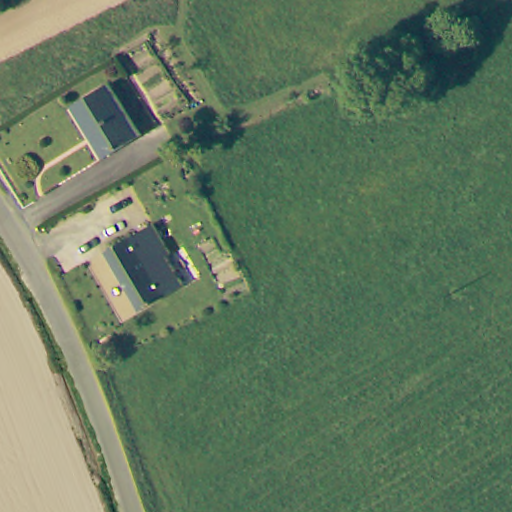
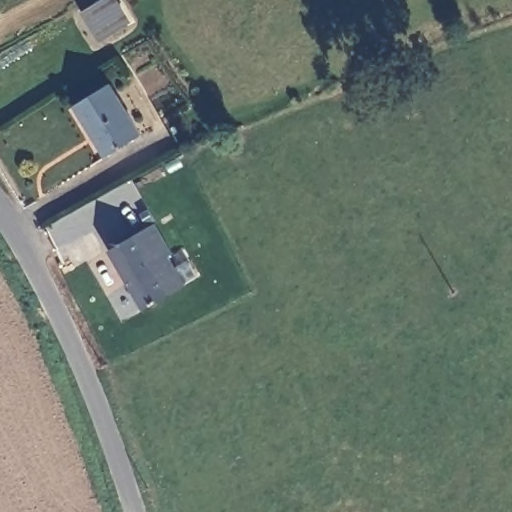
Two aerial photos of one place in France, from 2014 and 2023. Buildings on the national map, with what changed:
new [(100,42),(83,13),(102,0),(119,0),(133,22),(100,42)]
unchanged [(75,105),(110,83),(141,134),(109,155),(75,105)]
unchanged [(170,251),(165,255),(181,282),(140,303),(110,250),(155,223),(170,251)]

